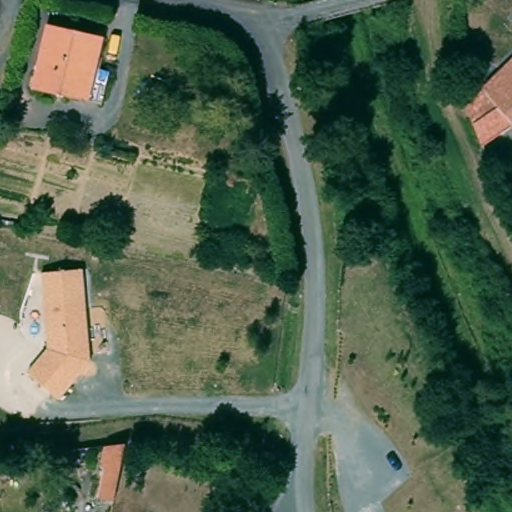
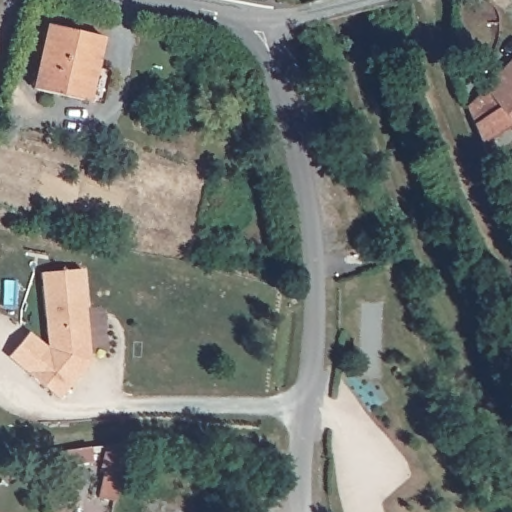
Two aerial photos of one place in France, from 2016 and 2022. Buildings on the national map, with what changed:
unchanged [(52,24),(102,33),(96,56),(47,46),(52,24)]
unchanged [(101,102),(87,99),(37,89),(47,46),(96,56),(95,65),(109,69),(101,102)]
unchanged [(512,107),(487,81),(512,57),(512,107)]
unchanged [(512,107),(512,122),(488,136),(472,95),(487,81),(512,107)]
unchanged [(80,281),(90,374),(59,412),(28,386),(48,361),(40,286),(80,281)]
unchanged [(107,466),(104,465),(108,444),(130,441),(118,498),(101,495),(107,466)]

